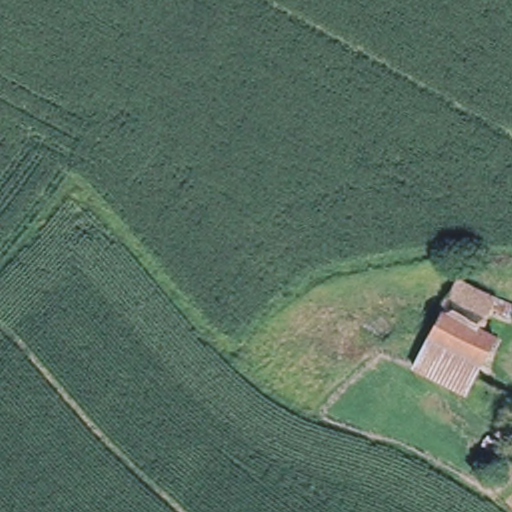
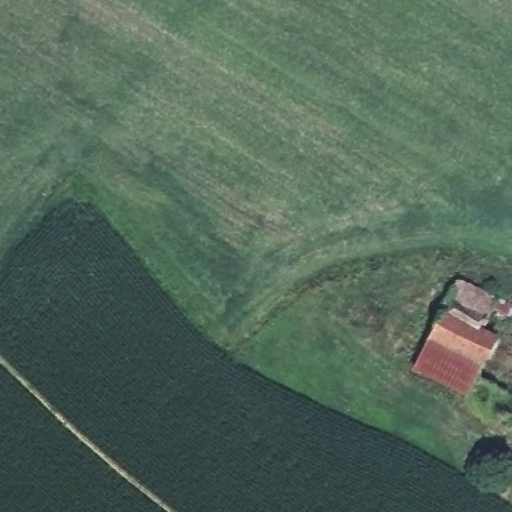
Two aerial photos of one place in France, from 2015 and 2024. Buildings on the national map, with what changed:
unchanged [(497,297),(482,329),(493,334),(462,396),(407,366),(456,277),(497,297)]

